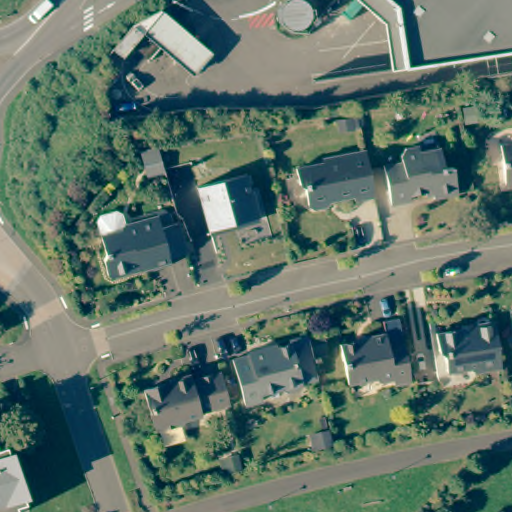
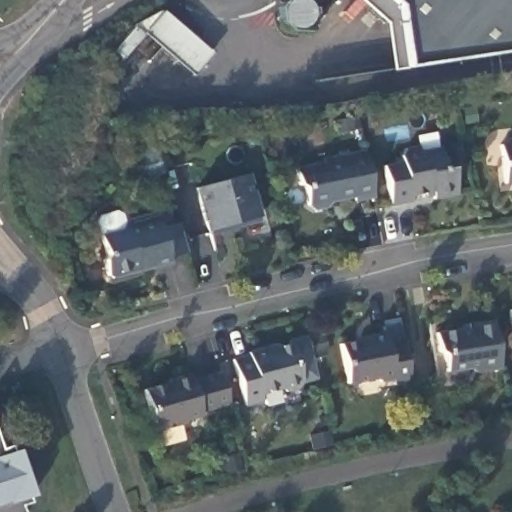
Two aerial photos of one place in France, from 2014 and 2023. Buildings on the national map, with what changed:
unchanged [(403,71),(393,10),(382,0),(512,0),(512,54),(403,71)]
unchanged [(168,14),(213,52),(194,75),(148,36),(168,14)]
unchanged [(506,183),(501,145),(512,143),(512,182),(506,183)]
unchanged [(385,166),(404,162),(402,155),(407,148),(420,146),(421,152),(441,147),(445,169),(454,167),(459,194),(435,198),(434,192),(412,195),(412,200),(393,204),(385,166)]
unchanged [(375,197),(356,200),(356,196),(333,200),(329,206),(315,208),(310,205),(307,187),(301,184),(298,168),(325,162),(324,159),(366,150),(375,197)]
unchanged [(249,179),(260,221),(240,227),(239,230),(225,234),(219,230),(211,231),(201,191),(249,179)]
unchanged [(182,236),(188,257),(171,262),(173,268),(155,273),(153,267),(146,269),(143,274),(115,282),(109,279),(105,263),(108,258),(103,240),(99,226),(101,220),(118,216),(123,219),(126,230),(160,220),(162,232),(179,227),(182,236)]
unchanged [(511,310),(512,309),(512,322),(511,310)]
unchanged [(476,372),(470,367),(448,371),(445,355),(439,351),(437,332),(474,327),(474,324),(494,321),(501,367),(476,372)]
unchanged [(395,389),(394,383),(381,386),(376,382),(349,387),(341,348),(369,343),(368,341),(386,337),(386,335),(401,332),(404,347),(411,386),(395,389)]
unchanged [(282,396),(276,392),(256,397),(258,405),(241,410),(228,363),(244,359),(244,357),(262,352),(263,355),(287,347),(286,345),(303,341),(312,382),(297,386),(294,392),(282,396)]
unchanged [(202,411),(203,414),(184,419),(185,422),(156,430),(145,388),(172,382),(171,379),(191,373),(193,379),(221,372),(230,403),(202,411)]
unchanged [(17,478),(23,495),(28,512),(0,512),(0,451),(7,449),(17,478)]

